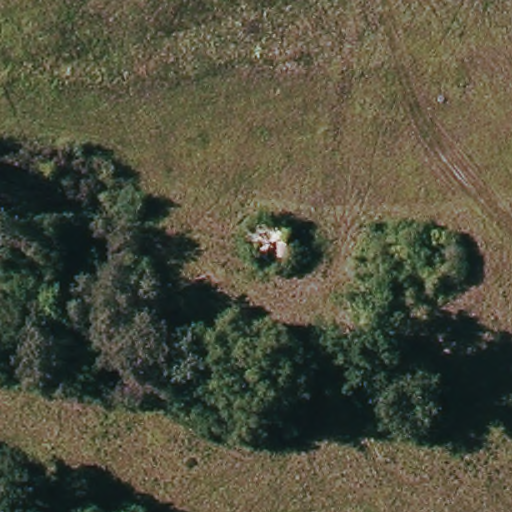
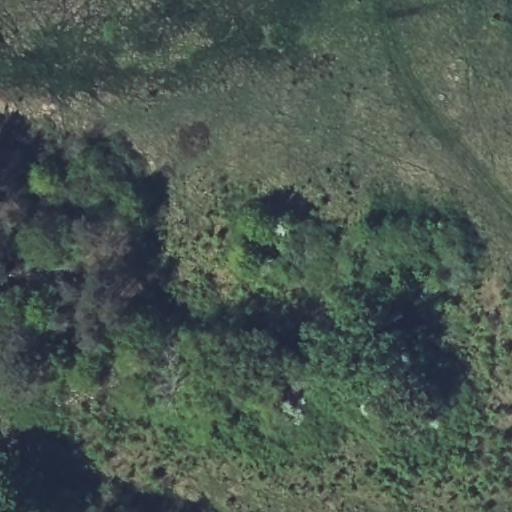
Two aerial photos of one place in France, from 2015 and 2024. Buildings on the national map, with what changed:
unchanged [(252,256),(255,230),(283,232),(281,259),(252,256)]

